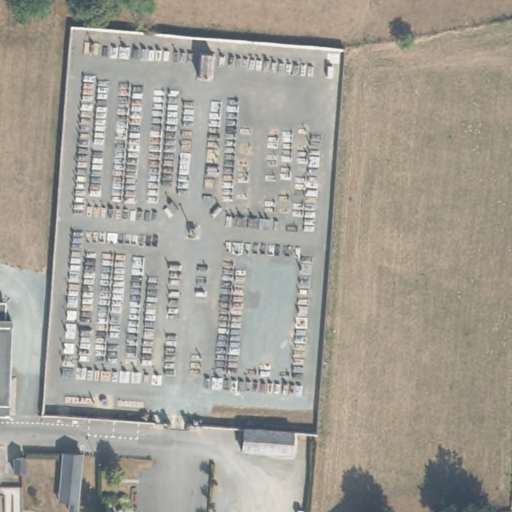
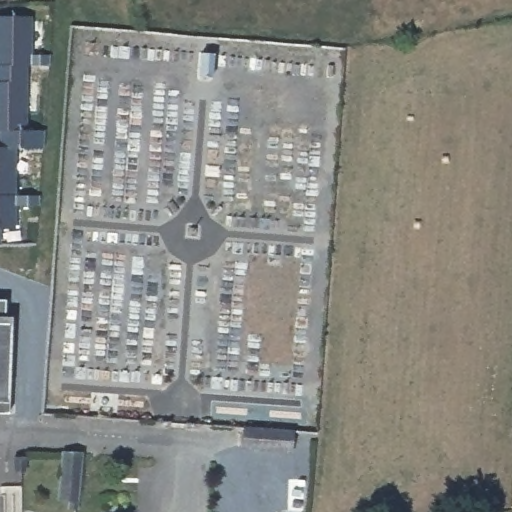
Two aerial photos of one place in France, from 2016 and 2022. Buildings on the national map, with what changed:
new [(0,128),(0,14),(29,14),(29,59),(24,59),(25,125),(44,126),(43,144),(13,144),(14,227),(0,227),(0,144),(0,128)]
unchanged [(0,301),(5,301),(3,319),(9,319),(6,414),(0,414),(0,301)]
unchanged [(289,438),(287,457),(237,453),(238,433),(251,434),(271,436),(289,438)]
unchanged [(76,511),(57,511),(58,453),(80,453),(76,511)]
unchanged [(23,461),(24,475),(12,476),(11,476),(9,462),(11,462),(23,461)]

